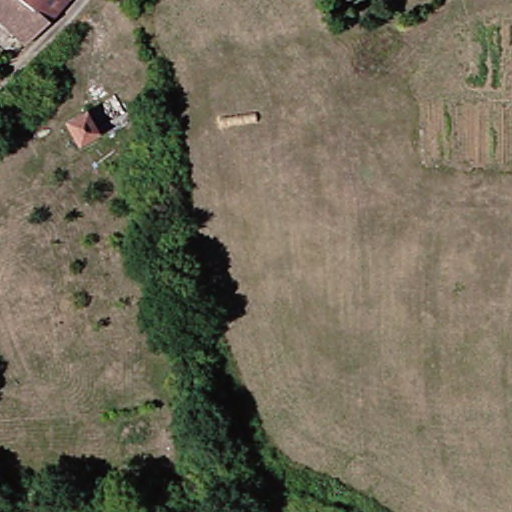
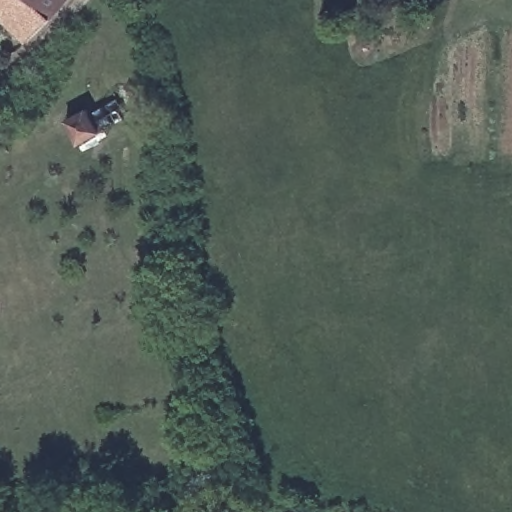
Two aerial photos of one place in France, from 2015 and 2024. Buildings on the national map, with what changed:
unchanged [(40,26),(26,39),(20,44),(0,24),(0,0),(61,0),(51,13),(40,26)]
unchanged [(73,155),(62,134),(81,124),(92,144),(73,155)]

